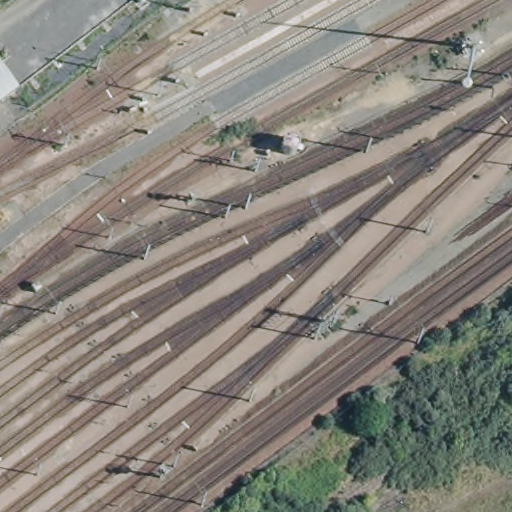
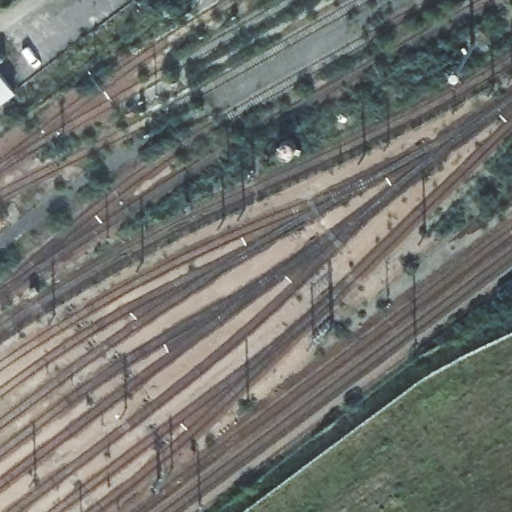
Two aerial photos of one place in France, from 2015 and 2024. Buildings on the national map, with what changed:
unchanged [(0,103),(0,67),(17,90),(0,103)]

